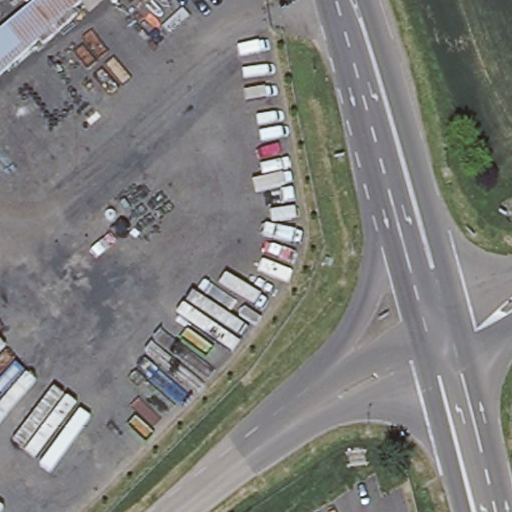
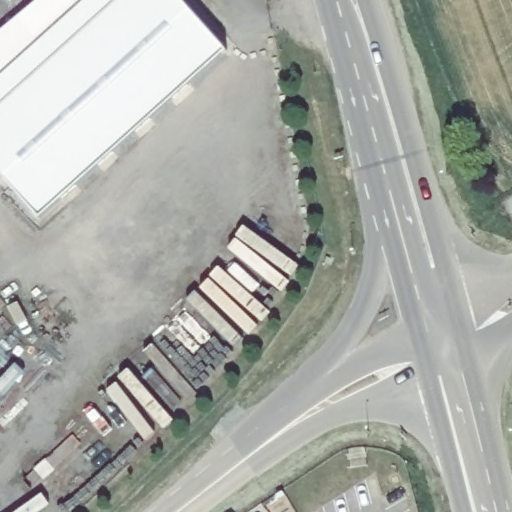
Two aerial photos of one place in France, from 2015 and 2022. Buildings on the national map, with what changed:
unchanged [(0,33),(37,0),(74,0),(0,66),(0,33)]
new [(95,23),(119,0),(181,0),(225,51),(40,217),(0,172),(0,65),(74,0),(76,0),(95,23)]

